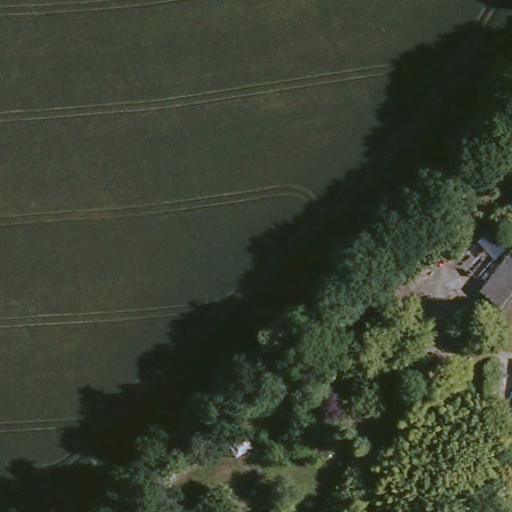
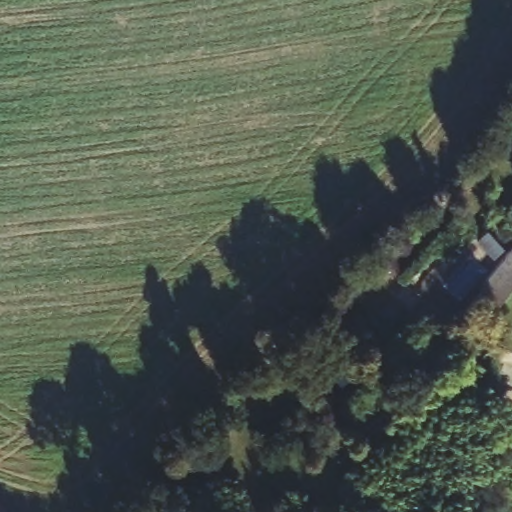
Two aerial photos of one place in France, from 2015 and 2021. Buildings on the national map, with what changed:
unchanged [(482,287),(512,248),(512,293),(503,305),(482,287)]

